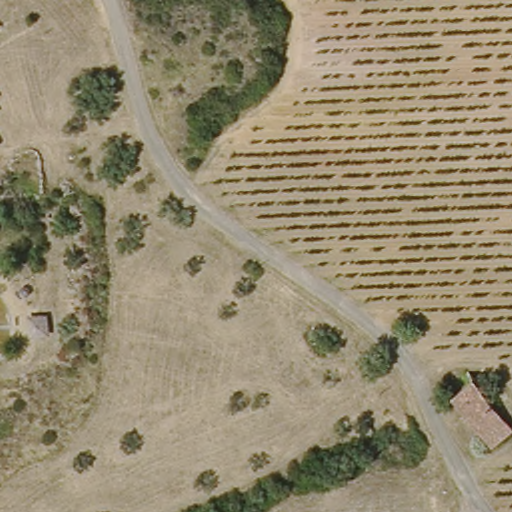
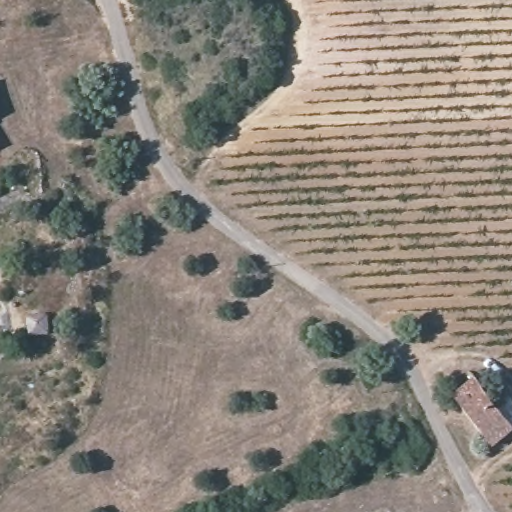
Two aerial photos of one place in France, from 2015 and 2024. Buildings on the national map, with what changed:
unchanged [(26,316),(47,315),(48,335),(28,336),(26,316)]
unchanged [(470,381),(511,427),(491,445),(449,397),(470,381)]

